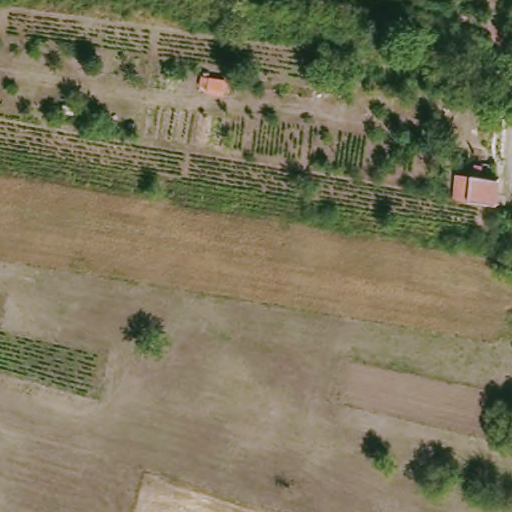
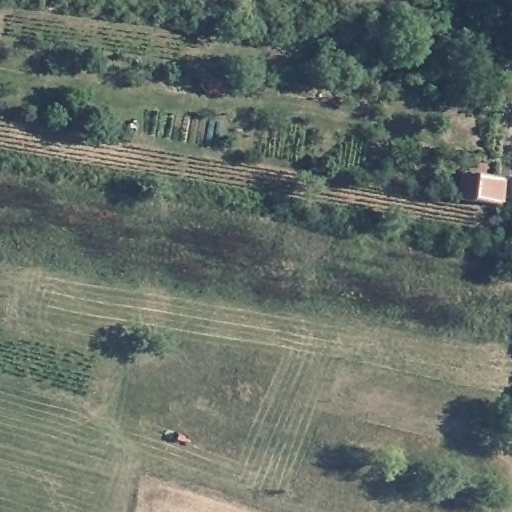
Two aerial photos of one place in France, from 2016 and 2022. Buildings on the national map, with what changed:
unchanged [(505,102),(491,101),(494,82),(507,84),(505,102)]
unchanged [(497,205),(470,202),(472,176),(499,180),(497,205)]

